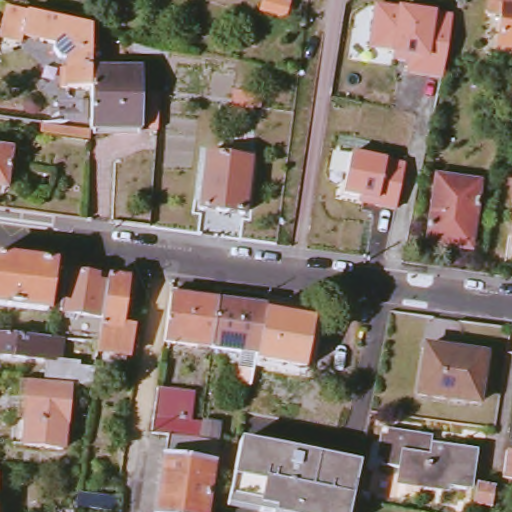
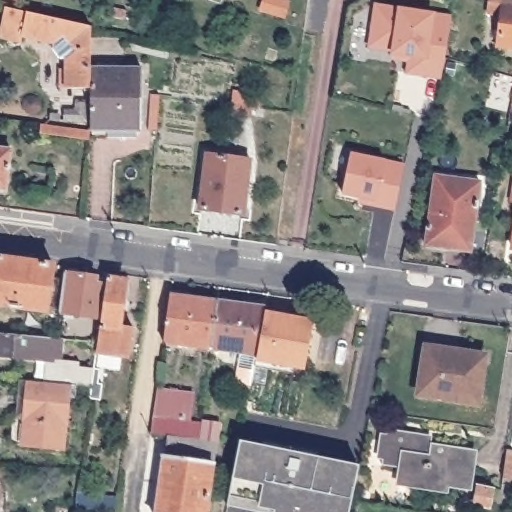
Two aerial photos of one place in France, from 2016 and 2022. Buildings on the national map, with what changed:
unchanged [(260,11),(263,0),(274,0),(269,14),(260,11)]
unchanged [(499,50),(502,20),(487,19),(489,0),(512,0),(512,51),(499,50)]
unchanged [(374,4),(399,8),(435,14),(452,16),(441,80),(405,75),(409,57),(390,54),(390,44),(367,48),(374,4)]
unchanged [(124,8),(122,16),(110,14),(112,5),(124,8)]
unchanged [(92,70),(92,91),(62,91),(62,70),(68,70),(67,60),(60,60),(52,51),(52,45),(21,38),(21,43),(0,38),(0,26),(4,8),(91,26),(92,70)]
unchanged [(140,71),(141,130),(93,130),(92,91),(92,70),(140,71)]
unchanged [(236,116),(239,106),(240,95),(260,98),(259,110),(252,109),(250,118),(236,116)]
unchanged [(90,135),(90,144),(40,136),(41,128),(90,135)]
unchanged [(5,188),(0,187),(0,149),(10,151),(5,188)]
unchanged [(351,152),(385,159),(405,166),(394,213),(341,196),(351,152)]
unchanged [(247,163),(242,212),(201,207),(206,158),(247,163)]
unchanged [(480,185),(475,227),(469,226),(465,255),(427,250),(435,179),(480,185)]
unchanged [(0,310),(0,262),(25,266),(64,271),(62,282),(72,284),(67,319),(0,310)]
unchanged [(72,278),(100,280),(99,288),(115,289),(112,304),(110,324),(67,319),(72,284),(72,278)]
unchanged [(140,286),(136,316),(133,315),(132,330),(150,333),(145,363),(105,358),(106,350),(110,324),(112,304),(115,289),(115,283),(140,286)]
unchanged [(210,341),(209,345),(162,337),(168,297),(169,293),(172,294),(172,291),(190,294),(189,297),(215,301),(210,341)]
unchanged [(240,306),(242,302),(260,304),(259,309),(264,310),(263,314),(262,317),(262,319),(255,352),(239,350),(209,345),(210,341),(215,301),(240,306)]
unchanged [(282,318),(280,324),(310,330),(302,370),(254,360),(255,352),(262,319),(262,317),(263,314),(282,318)]
unchanged [(0,338),(65,345),(72,346),(70,366),(0,358),(0,338)]
unchanged [(477,407),(417,398),(424,352),(483,359),(477,407)]
unchanged [(70,428),(67,452),(8,447),(10,423),(22,424),(25,385),(29,385),(70,389),(73,373),(97,377),(95,391),(77,389),(70,428)]
unchanged [(160,388),(187,391),(187,395),(197,397),(194,423),(204,425),(201,442),(171,438),(154,435),(160,388)]
unchanged [(467,494),(402,486),(404,474),(384,471),(388,435),(424,440),(422,447),(472,453),(467,494)]
unchanged [(201,442),(219,444),(210,512),(161,512),(162,499),(165,498),(167,479),(165,478),(171,438),(201,442)]
unchanged [(277,451),(276,457),(297,461),(299,455),(363,466),(357,499),(353,512),(280,512),(277,512),(256,512),(258,505),(227,498),(237,448),(237,444),(277,451)]
unchanged [(502,479),(505,452),(512,453),(512,480),(502,479)]
unchanged [(492,512),(482,512),(472,510),(477,491),(495,494),(492,512)]
unchanged [(74,507),(75,492),(104,495),(102,510),(74,507)]

